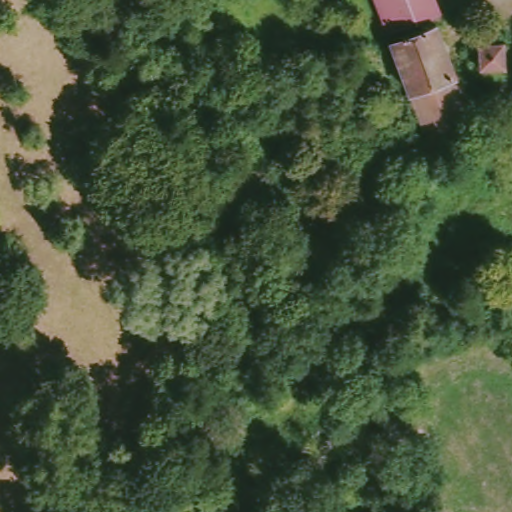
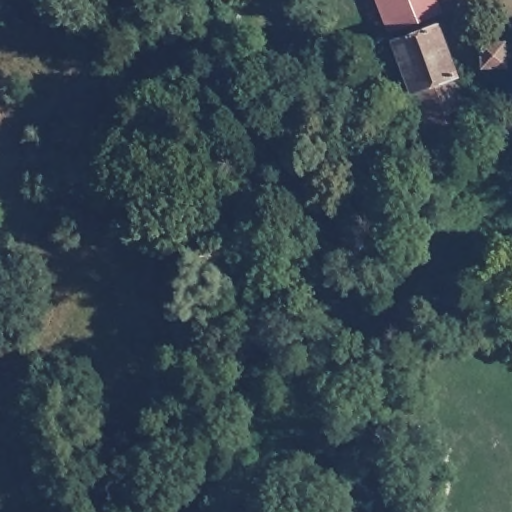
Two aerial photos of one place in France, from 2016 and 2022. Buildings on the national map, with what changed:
unchanged [(436,0),(441,12),(392,32),(380,0),(436,0)]
unchanged [(421,138),(429,132),(396,39),(441,23),(468,102),(446,110),(449,126),(432,139),(424,144),(421,138)]
unchanged [(479,68),(478,44),(499,41),(501,64),(479,68)]
unchanged [(376,143),(386,155),(370,168),(361,155),(376,143)]
unchanged [(204,190),(263,167),(274,202),(217,224),(204,190)]

